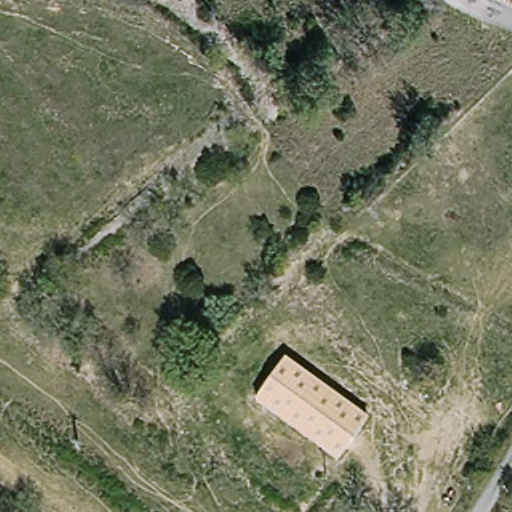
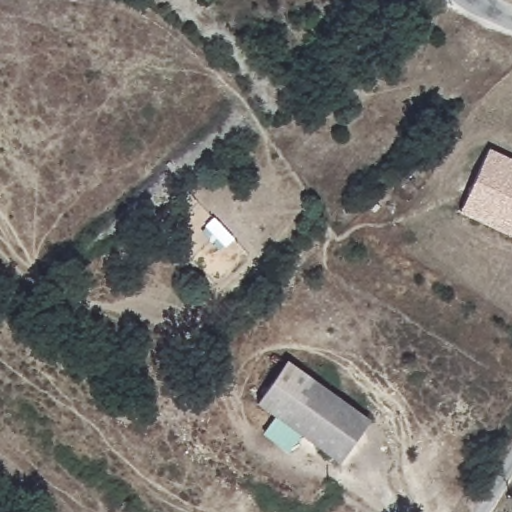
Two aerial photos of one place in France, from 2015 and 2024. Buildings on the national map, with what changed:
new [(459,213),(488,149),(512,160),(512,236),(459,213)]
unchanged [(282,364),(365,418),(338,459),(256,407),(282,364)]

